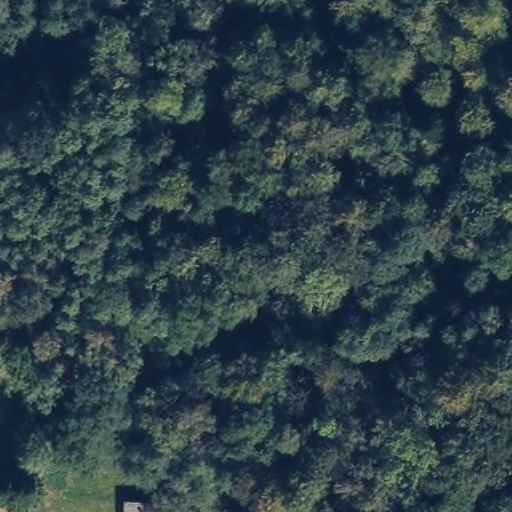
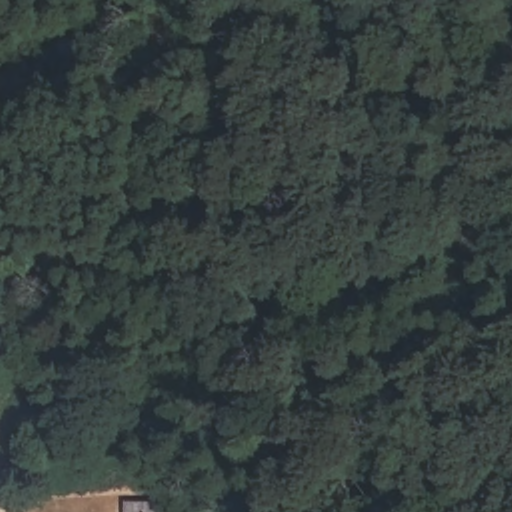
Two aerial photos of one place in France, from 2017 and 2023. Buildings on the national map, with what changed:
unchanged [(141,505),(141,512),(111,512),(111,504),(141,505)]

